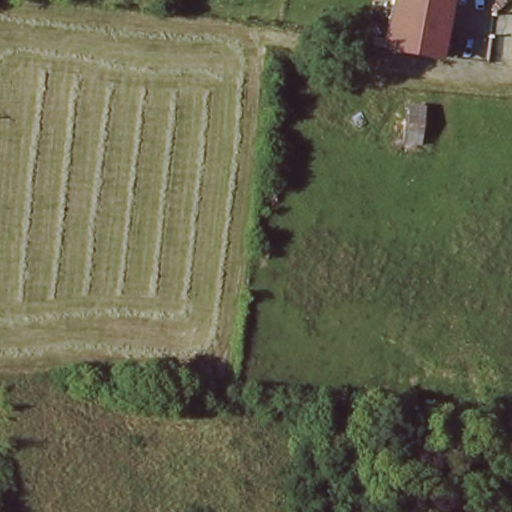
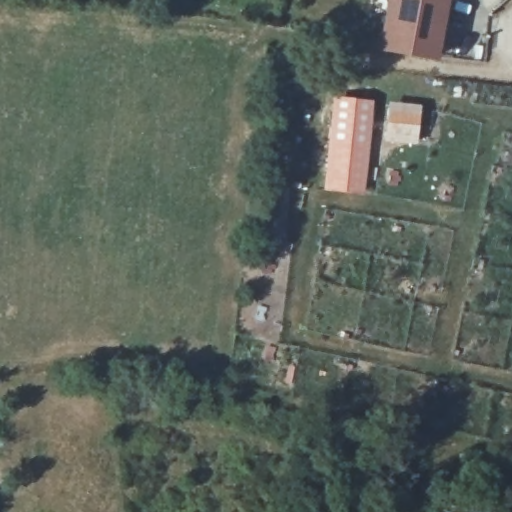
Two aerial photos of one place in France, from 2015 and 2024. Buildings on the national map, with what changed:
unchanged [(420,54),(387,48),(384,47),(390,10),(391,0),(451,0),(441,57),(420,54)]
demolished [(380,119),(383,86),(420,93),(416,121),(380,119)]
new [(375,100),(364,194),(321,190),(332,96),(375,100)]
new [(422,105),(417,145),(384,142),(388,101),(422,105)]

